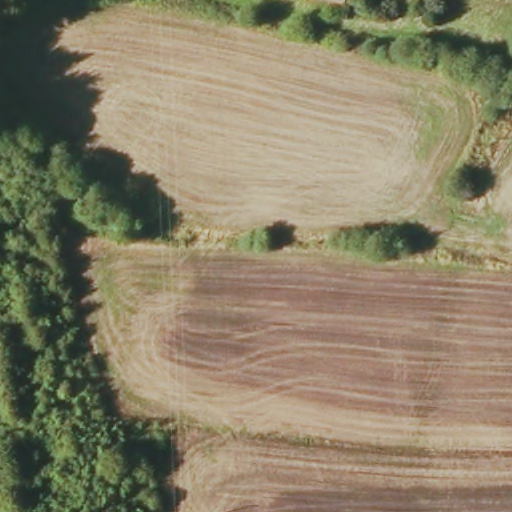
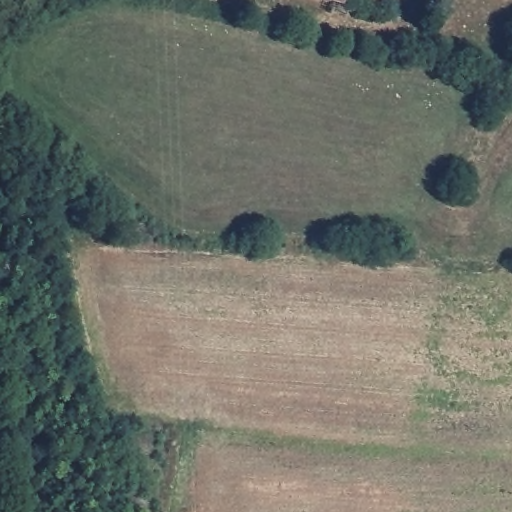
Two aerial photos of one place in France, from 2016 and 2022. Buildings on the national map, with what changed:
unchanged [(354,3),(342,0),(354,0),(354,3)]

